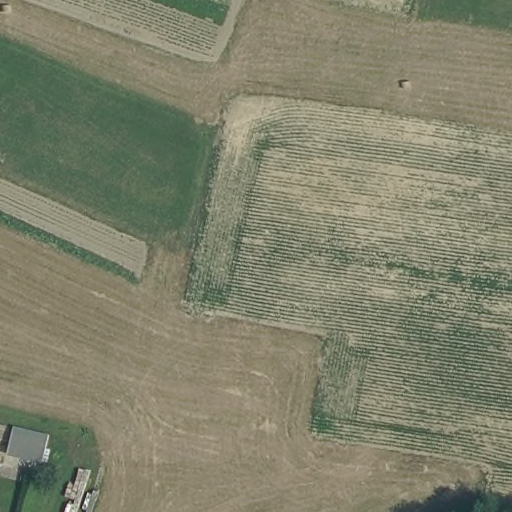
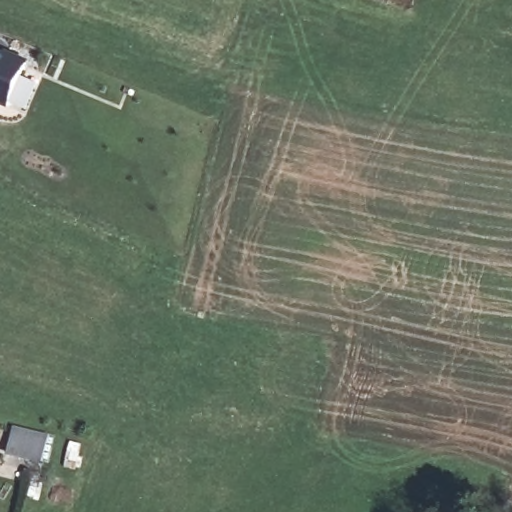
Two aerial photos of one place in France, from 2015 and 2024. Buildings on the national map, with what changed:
new [(0,53),(7,56),(7,53),(29,62),(10,110),(0,107),(0,53)]
unchanged [(20,428),(55,436),(48,464),(14,456),(20,428)]

